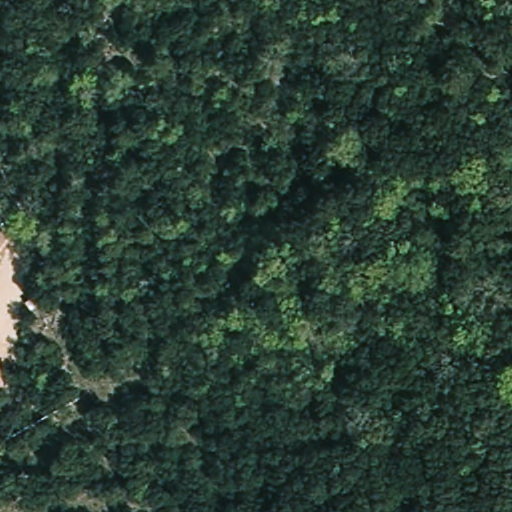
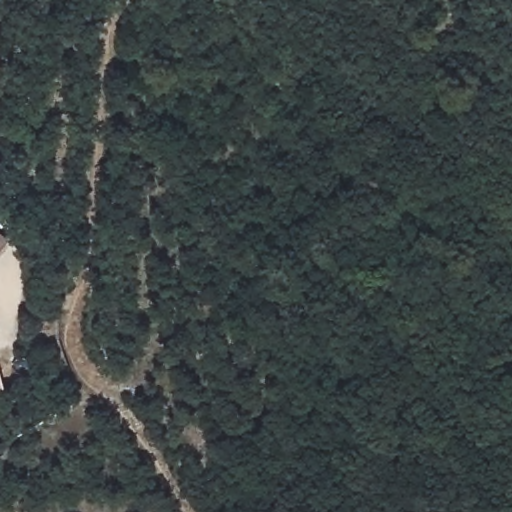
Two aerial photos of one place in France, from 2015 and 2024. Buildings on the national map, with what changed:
unchanged [(9,235),(0,246),(0,228),(9,235)]

